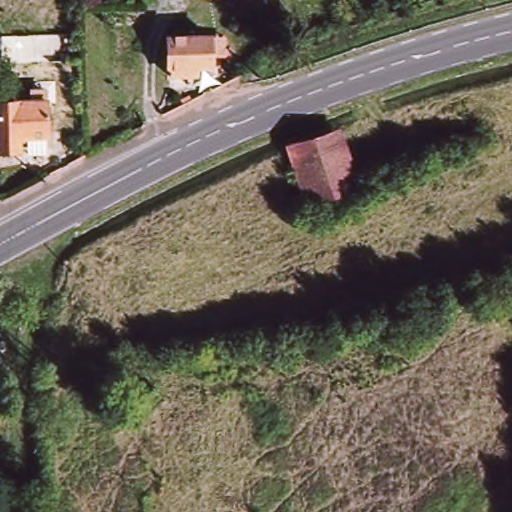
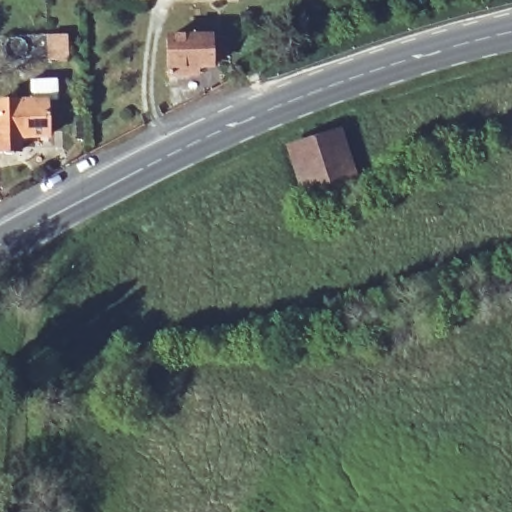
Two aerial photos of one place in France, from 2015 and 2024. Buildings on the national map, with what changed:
unchanged [(215,36),(213,74),(174,74),(175,37),(215,36)]
unchanged [(0,149),(0,103),(49,102),(49,153),(33,153),(33,146),(22,147),(22,155),(7,155),(7,149),(0,149)]
unchanged [(361,190),(312,207),(294,151),(344,135),(361,190)]

